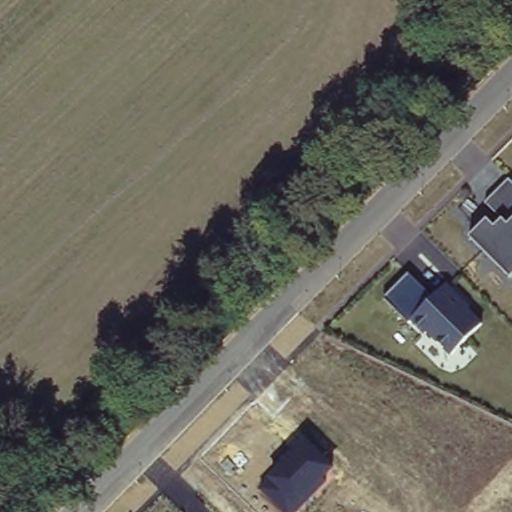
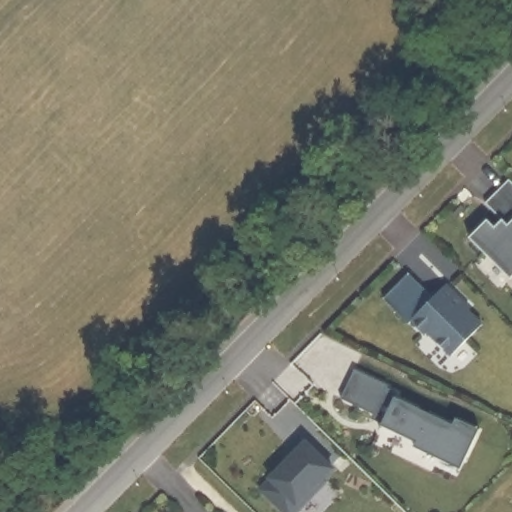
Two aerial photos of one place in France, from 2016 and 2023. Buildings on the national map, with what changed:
unchanged [(492,222),(500,217),(486,202),(508,179),(512,183),(512,278),(511,280),(468,237),(486,219),(492,222)]
unchanged [(408,273),(434,300),(448,286),(468,307),(467,308),(481,325),(451,352),(429,331),(424,332),(410,321),(384,298),(408,273)]
new [(457,420),(462,411),(488,424),(468,464),(379,425),(382,420),(340,400),(355,368),(457,420)]
unchanged [(323,478),(327,483),(296,512),(282,512),(258,488),(305,441),(334,468),(323,478)]

